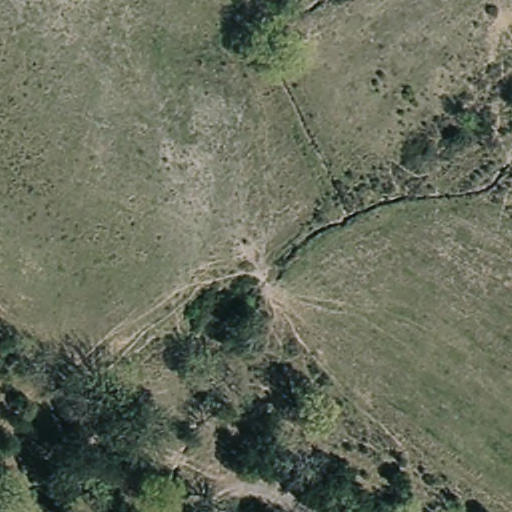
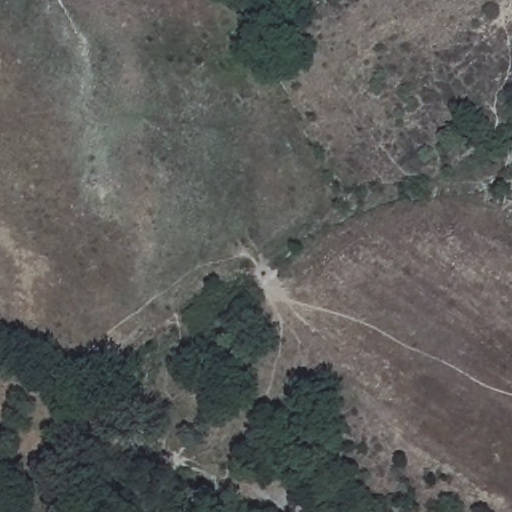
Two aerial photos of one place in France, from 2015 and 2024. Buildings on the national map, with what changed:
[]

